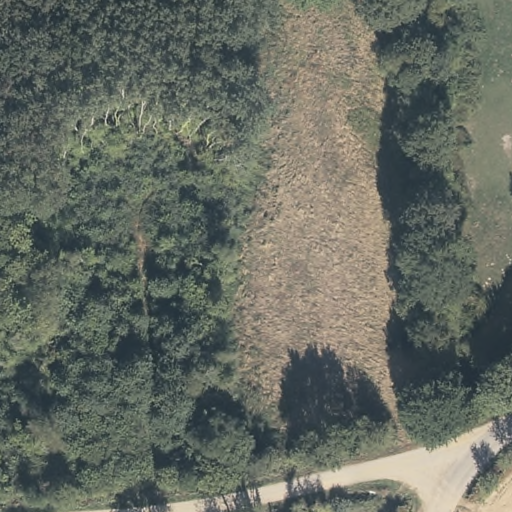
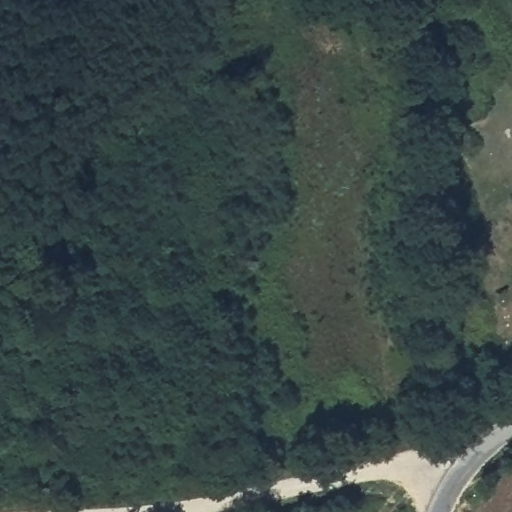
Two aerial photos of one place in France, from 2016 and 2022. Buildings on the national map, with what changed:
[]

